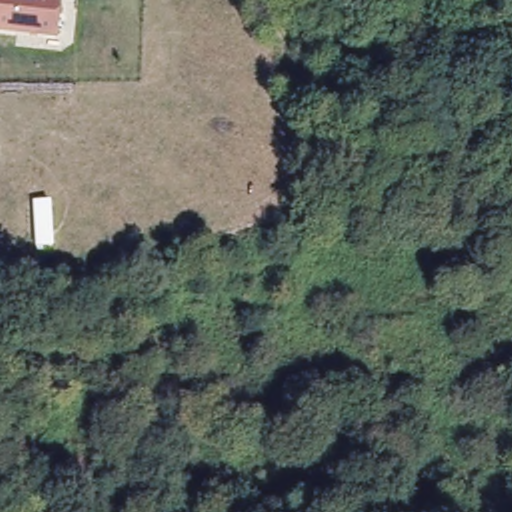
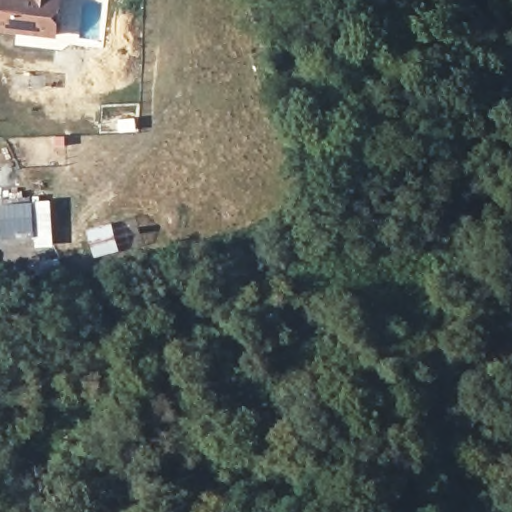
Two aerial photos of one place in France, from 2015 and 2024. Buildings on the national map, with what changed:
unchanged [(0,30),(0,0),(64,0),(59,37),(0,30)]
new [(55,246),(36,247),(35,231),(5,233),(3,202),(52,200),(55,246)]

